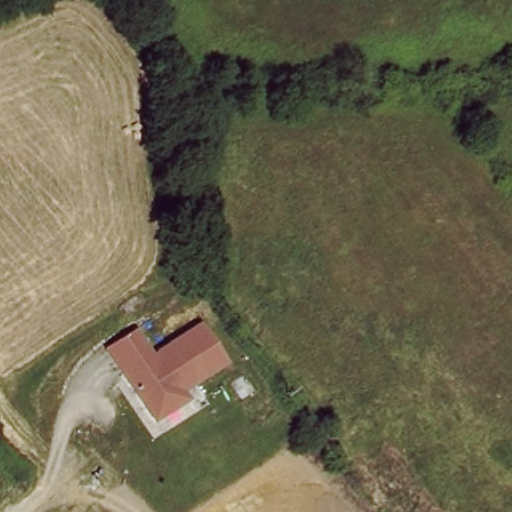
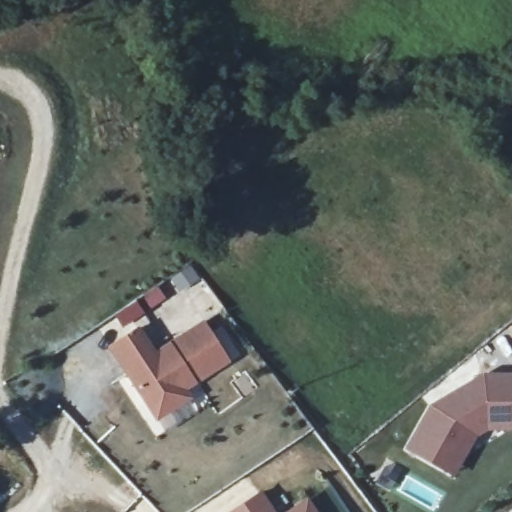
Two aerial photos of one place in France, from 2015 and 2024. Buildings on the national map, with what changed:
unchanged [(223,363),(183,389),(189,400),(153,422),(104,345),(136,326),(151,349),(199,318),(223,363)]
new [(481,374),(512,374),(512,432),(487,431),(477,439),(454,479),(404,453),(429,406),(481,374)]
unchanged [(259,512),(245,512),(255,505),(259,512)]

